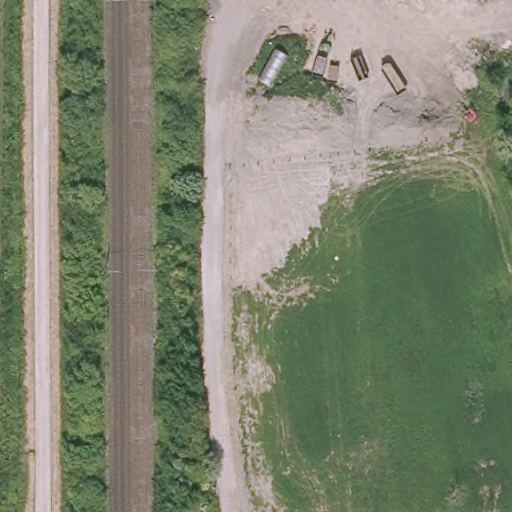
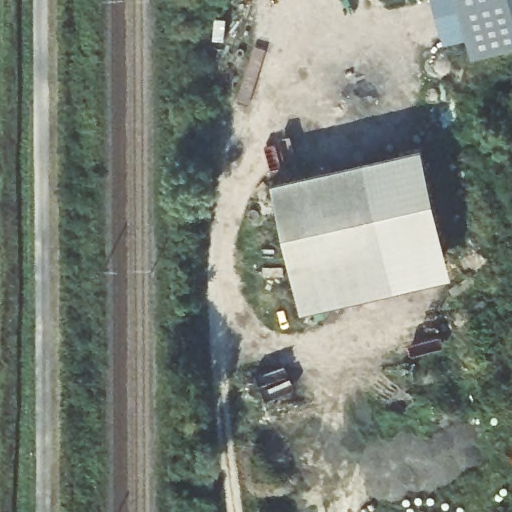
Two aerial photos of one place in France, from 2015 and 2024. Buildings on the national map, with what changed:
new [(474,55),(467,34),(446,42),(434,0),(512,0),(512,44),(474,55)]
new [(426,139),(453,267),(303,303),(275,169),(426,139)]

